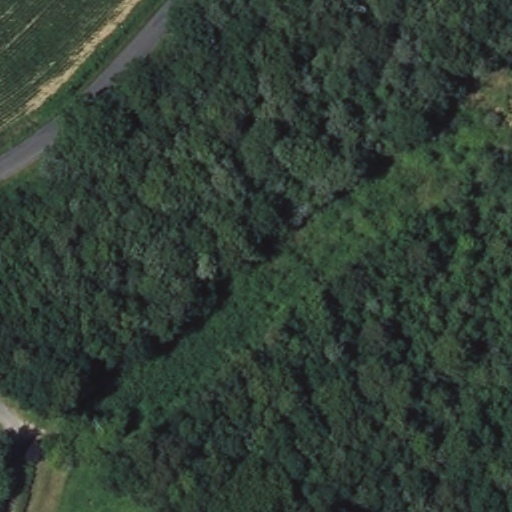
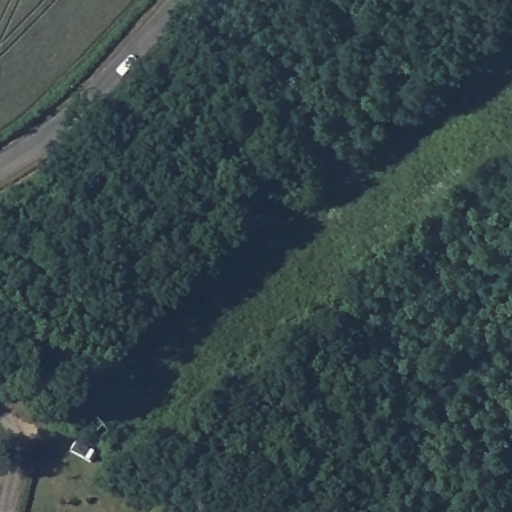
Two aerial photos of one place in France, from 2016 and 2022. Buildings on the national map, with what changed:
[]

